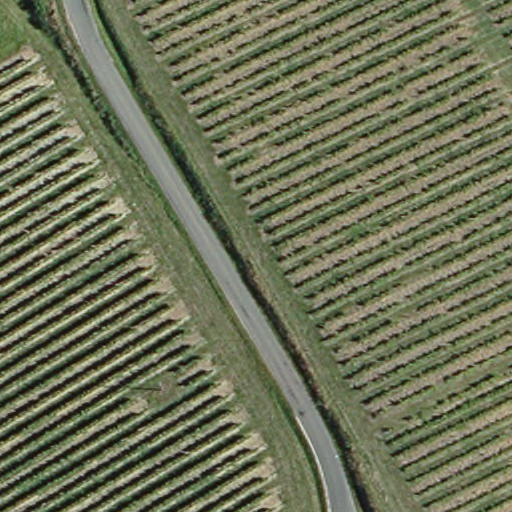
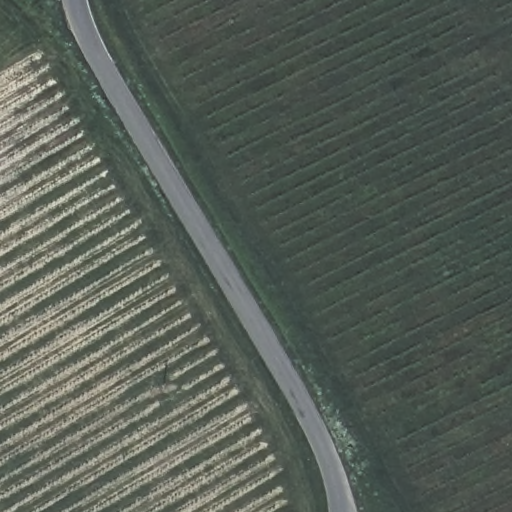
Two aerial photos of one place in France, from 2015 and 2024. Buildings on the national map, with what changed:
[]

